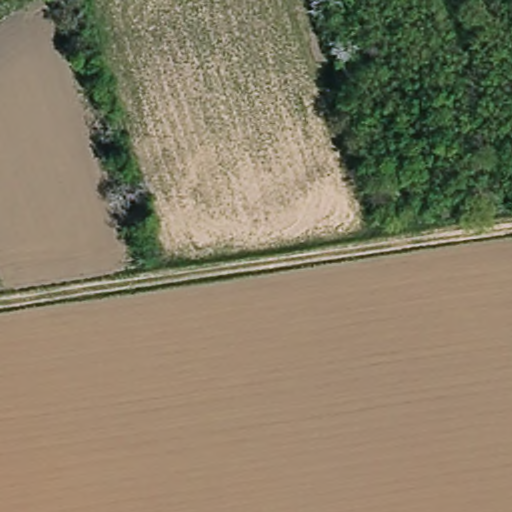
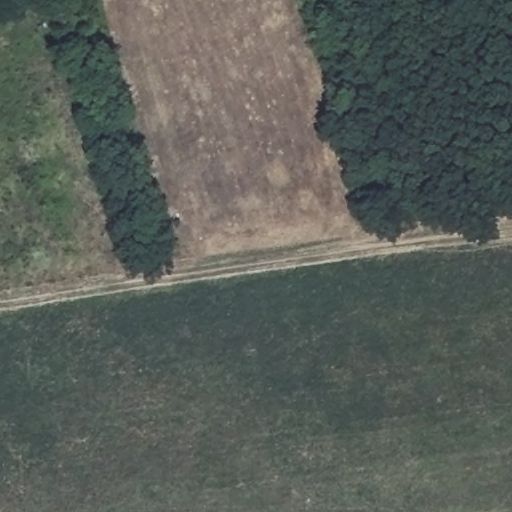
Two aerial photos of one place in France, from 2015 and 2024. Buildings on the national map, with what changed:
[]

